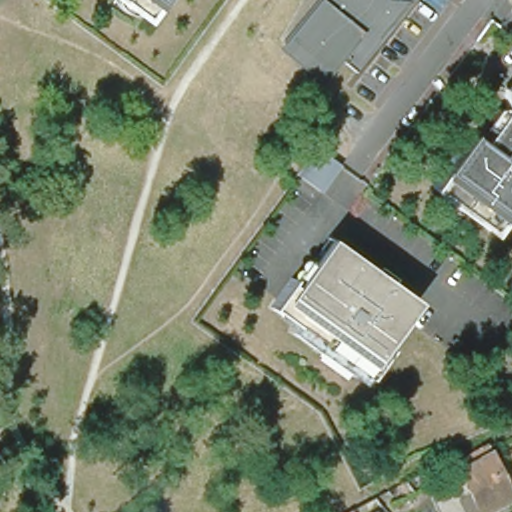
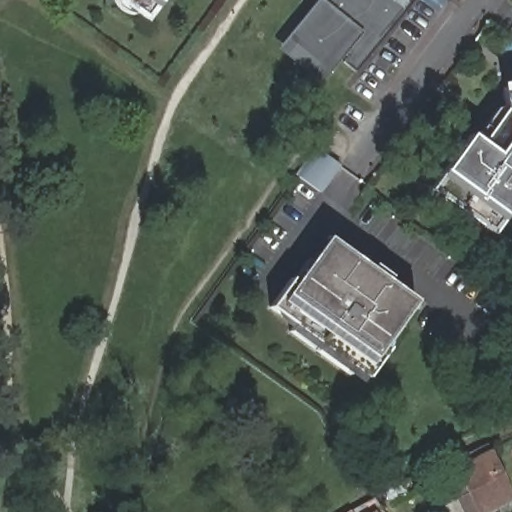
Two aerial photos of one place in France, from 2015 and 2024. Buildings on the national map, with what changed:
unchanged [(120,0),(159,0),(145,18),(120,0)]
unchanged [(344,58),(340,55),(323,76),(281,42),(315,0),(412,0),(352,73),(340,64),(344,58)]
unchanged [(470,138),(481,144),(505,111),(501,84),(512,83),(512,208),(502,221),(488,241),(428,194),(470,138)]
unchanged [(319,154),(344,172),(324,200),(299,182),(319,154)]
unchanged [(314,357),(319,351),(316,349),(311,355),(289,338),(293,332),(269,313),(288,288),(290,290),(307,266),(310,268),(328,244),(332,247),(357,265),(370,275),(372,272),(388,284),(386,287),(410,305),(411,305),(415,308),(410,317),(402,330),(384,354),(387,356),(365,385),(352,375),(348,382),(314,357)]
unchanged [(508,496),(477,511),(456,470),(487,454),(508,496)]

